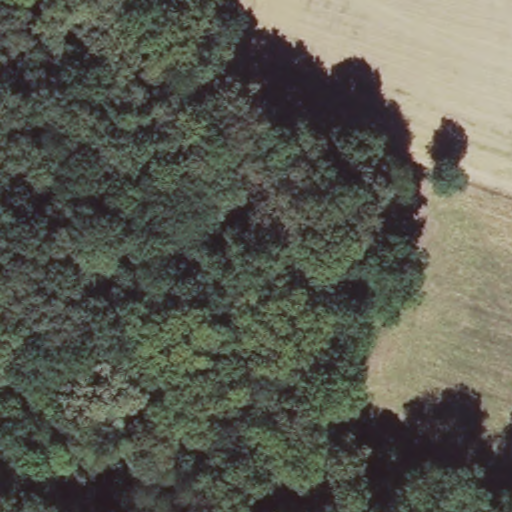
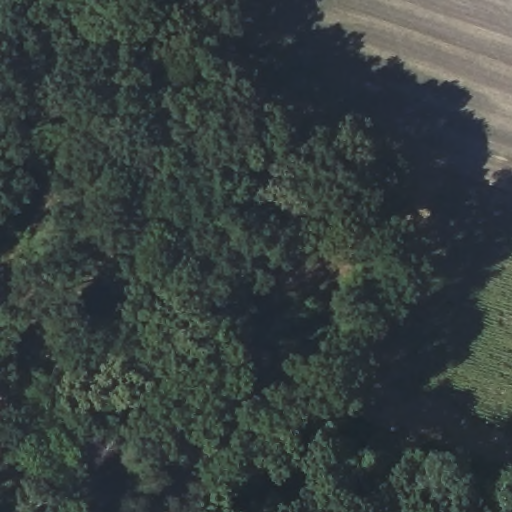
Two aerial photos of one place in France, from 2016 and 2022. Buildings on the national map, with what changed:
[]

